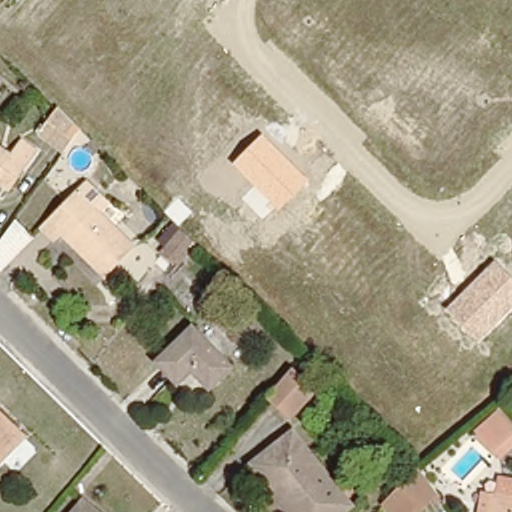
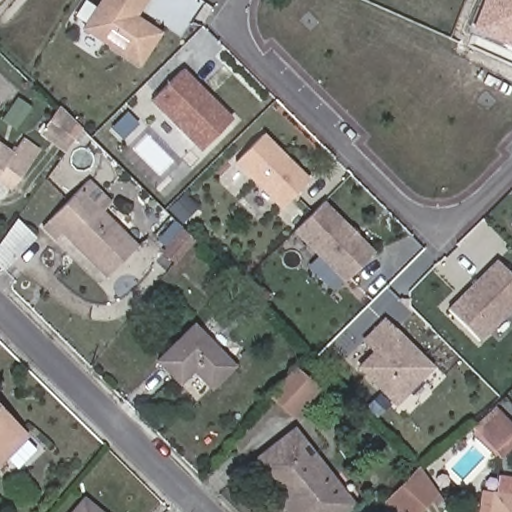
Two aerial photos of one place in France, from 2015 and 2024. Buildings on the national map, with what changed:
new [(140,68),(81,30),(101,0),(148,0),(137,17),(162,33),(140,68)]
new [(512,48),(471,30),(483,0),(512,0),(512,48)]
new [(200,153),(150,102),(183,69),(233,119),(200,153)]
unchanged [(40,133),(57,106),(58,107),(78,127),(62,149),(40,133)]
unchanged [(280,211),(231,164),(263,134),(311,181),(280,211)]
unchanged [(0,182),(0,145),(10,153),(22,137),(37,148),(16,177),(8,188),(0,182)]
unchanged [(42,219),(78,185),(136,244),(103,276),(64,236),(66,234),(59,226),(54,232),(42,219)]
new [(343,284),(293,233),(323,201),(374,252),(343,284)]
unchanged [(153,244),(172,222),(194,238),(176,260),(153,244)]
unchanged [(0,263),(0,243),(18,224),(33,238),(5,268),(0,263)]
unchanged [(446,310),(494,260),(512,277),(512,311),(480,342),(446,310)]
new [(361,342),(385,318),(396,329),(435,369),(395,409),(356,369),(372,353),(361,342)]
unchanged [(233,366),(214,385),(195,367),(179,382),(157,360),(191,325),(233,366)]
unchanged [(295,368),(316,388),(292,414),(271,395),(295,368)]
unchanged [(25,433),(0,456),(0,407),(25,433)]
unchanged [(483,429),(502,413),(512,424),(512,440),(501,450),(483,429)]
unchanged [(288,512),(286,510),(250,463),(274,446),(296,430),(333,478),(354,505),(345,512),(288,512)]
unchanged [(432,501),(420,512),(401,512),(390,501),(415,476),(432,501)]
unchanged [(512,492),(512,512),(495,512),(498,490),(512,492)]
unchanged [(96,512),(69,512),(80,499),(96,512)]

